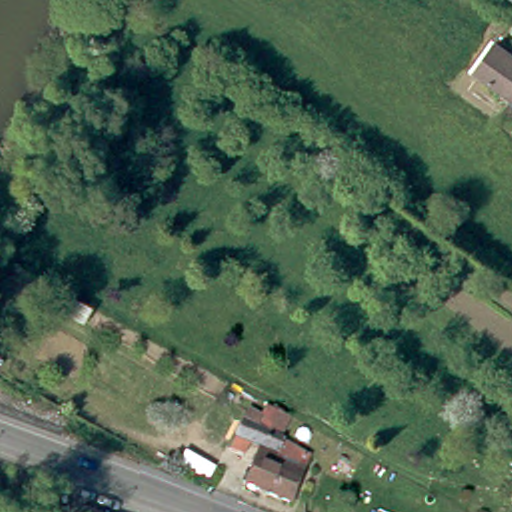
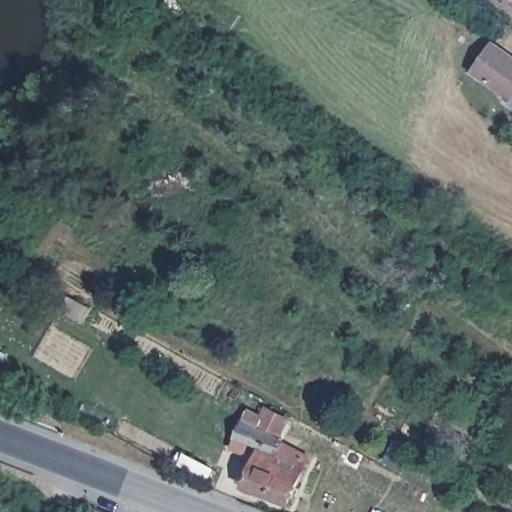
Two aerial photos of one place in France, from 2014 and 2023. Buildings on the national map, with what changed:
unchanged [(507,97),(477,76),(496,50),(512,62),(512,101),(507,97)]
unchanged [(508,106),(512,101),(512,109),(508,106)]
unchanged [(262,448),(253,443),(247,450),(233,442),(243,421),(256,427),(266,407),(288,421),(278,442),(308,457),(290,503),(247,486),(262,448)]

